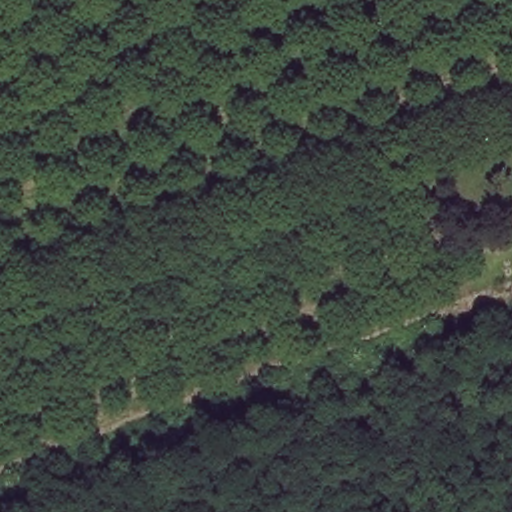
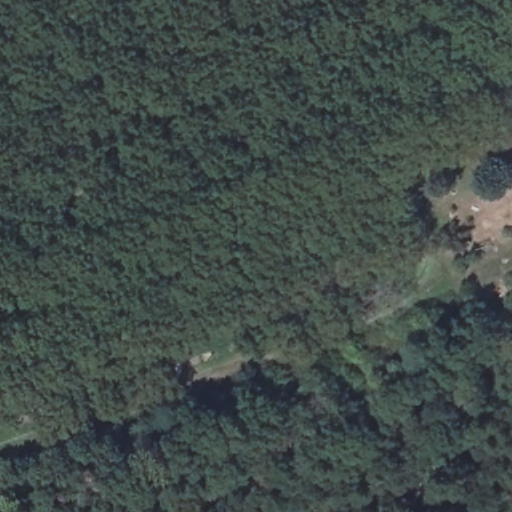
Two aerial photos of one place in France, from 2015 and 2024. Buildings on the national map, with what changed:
[]

